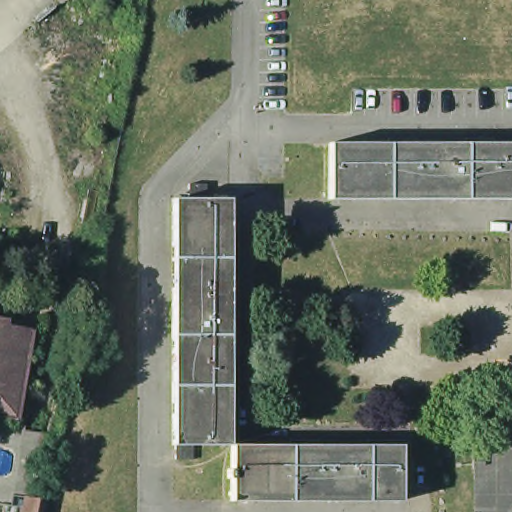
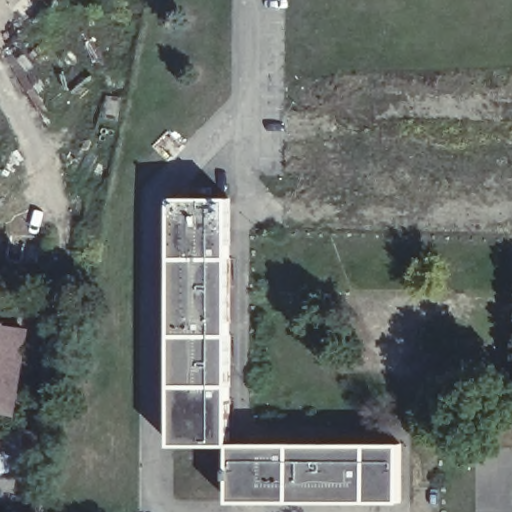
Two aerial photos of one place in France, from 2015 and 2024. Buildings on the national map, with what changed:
demolished [(324,201),(325,143),(360,143),(435,144),(512,144),(512,200),(324,201)]
unchanged [(168,462),(168,445),(165,445),(170,201),(185,202),(187,187),(202,188),(202,202),(227,203),(227,225),(227,307),(225,389),(225,447),(188,446),(187,463),(168,462)]
unchanged [(0,404),(0,320),(4,321),(30,325),(25,350),(15,407),(5,405),(0,404)]
demolished [(4,414),(27,418),(31,419),(18,502),(13,501),(0,498),(0,404),(5,405),(4,414)]
unchanged [(226,503),(228,447),(263,447),(355,447),(393,447),(392,501),(226,503)]

